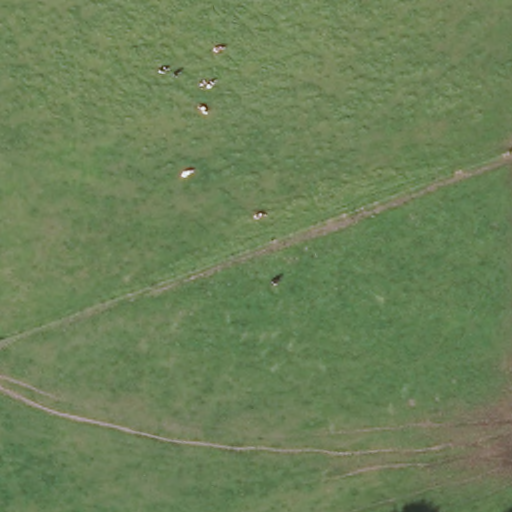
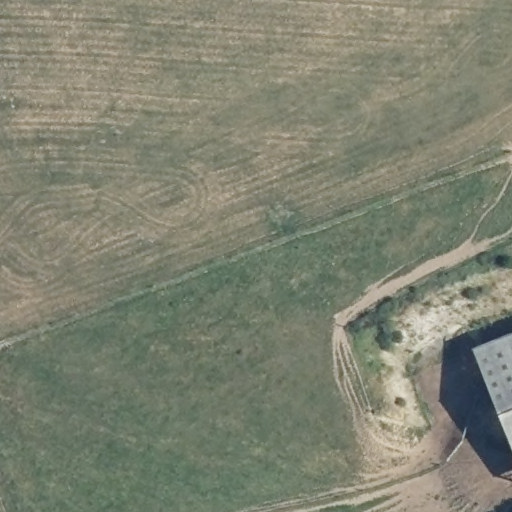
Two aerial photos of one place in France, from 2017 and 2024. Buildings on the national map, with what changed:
new [(475,345),(512,333),(512,448),(475,345)]

